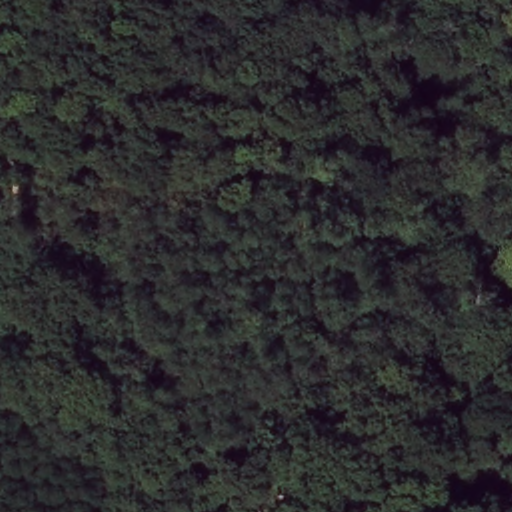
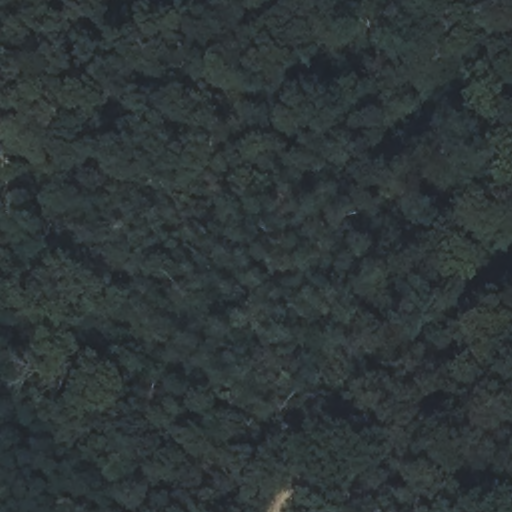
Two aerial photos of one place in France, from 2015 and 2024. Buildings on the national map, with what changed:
[]

